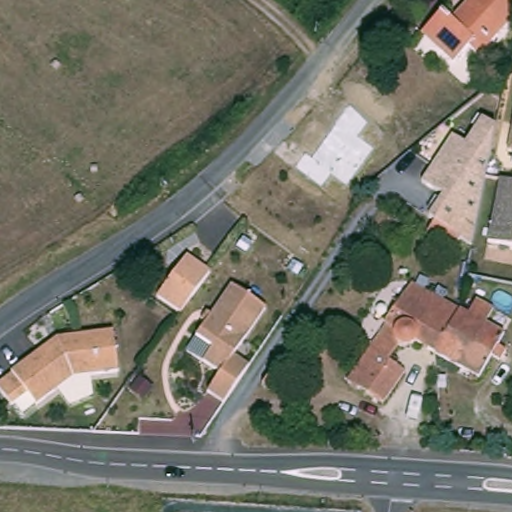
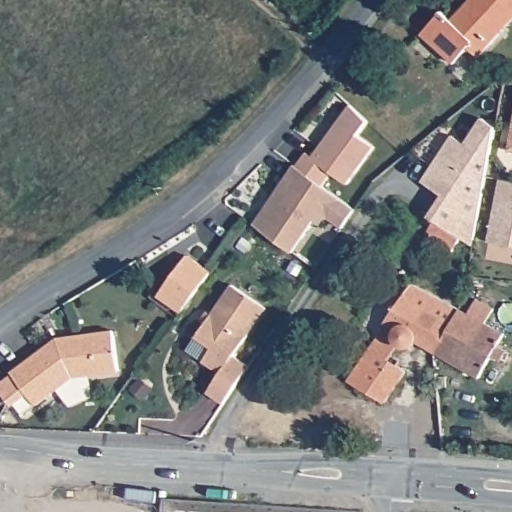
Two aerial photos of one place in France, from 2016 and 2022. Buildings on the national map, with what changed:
unchanged [(447,11),(458,21),(476,0),(512,0),(512,23),(483,56),(473,46),(459,62),(442,46),(427,33),(430,30),(447,11)]
new [(310,151),(316,155),(354,103),(372,119),(362,133),(378,145),(351,182),(336,170),(326,184),(300,165),(310,151)]
unchanged [(486,179),(472,242),(427,220),(438,197),(421,179),(456,136),(468,146),(482,119),(497,125),(486,179)]
unchanged [(512,121),(512,150),(506,149),(512,121)]
new [(298,163),(300,165),(326,184),(356,206),(344,225),(331,215),(317,218),(294,249),(256,221),(298,163)]
unchanged [(512,245),(486,240),(500,177),(512,180),(512,245)]
unchanged [(458,238),(452,251),(424,237),(431,224),(458,238)]
unchanged [(212,271),(189,303),(183,311),(159,295),(189,254),(212,271)]
unchanged [(412,338),(410,340),(409,341),(406,342),(403,342),(390,361),(397,366),(397,367),(405,372),(384,402),(349,380),(388,324),(386,323),(412,283),(460,308),(458,310),(434,351),(412,338)]
unchanged [(221,374),(188,352),(231,287),(264,308),(231,360),(246,370),(224,403),(209,394),(221,374)]
unchanged [(460,308),(469,313),(477,298),(494,308),(486,323),(504,333),(479,377),(434,351),(458,310),(460,308)]
unchanged [(57,340),(59,343),(71,334),(120,329),(125,370),(80,375),(43,403),(35,391),(19,403),(4,383),(20,371),(19,370),(57,340)]
unchanged [(296,360),(279,385),(266,376),(271,368),(283,351),(296,360)]

